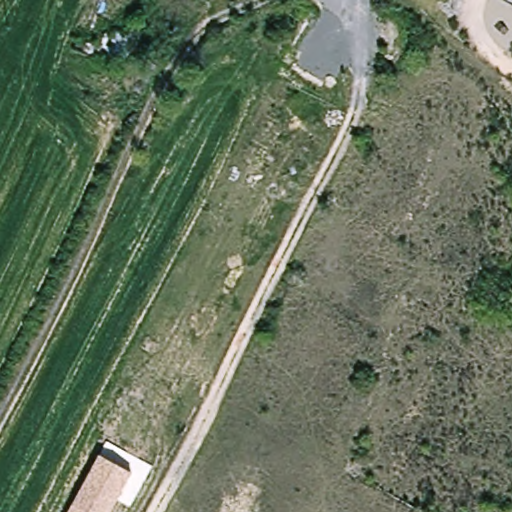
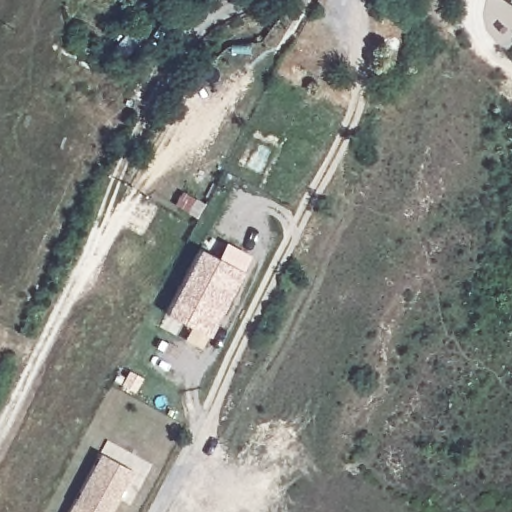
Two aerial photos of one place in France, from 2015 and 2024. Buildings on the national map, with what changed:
unchanged [(103,19),(131,31),(147,10),(159,21),(129,65),(96,48),(103,19)]
new [(200,254),(242,277),(206,340),(164,318),(200,254)]
unchanged [(110,512),(66,512),(98,453),(132,471),(110,512)]

